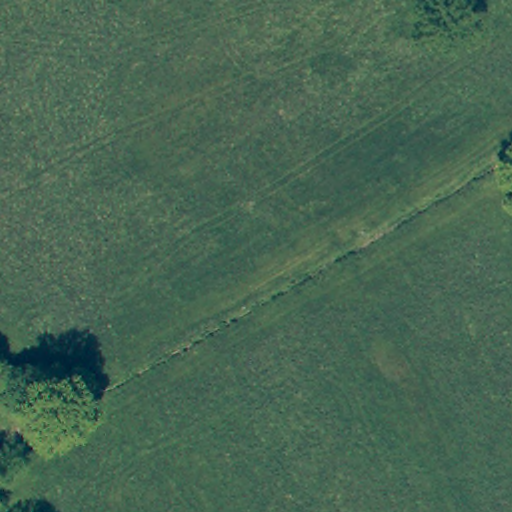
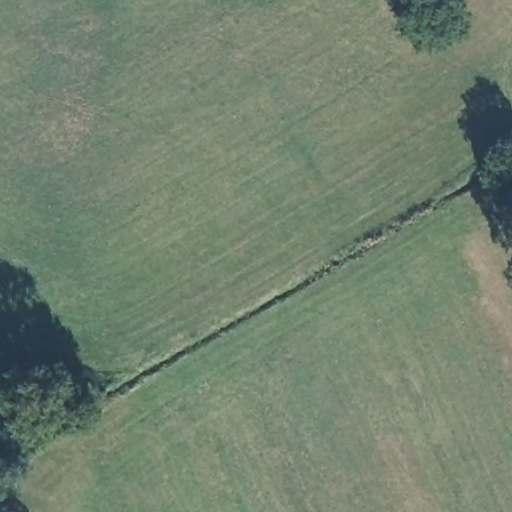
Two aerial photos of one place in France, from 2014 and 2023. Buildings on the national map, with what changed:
[]

